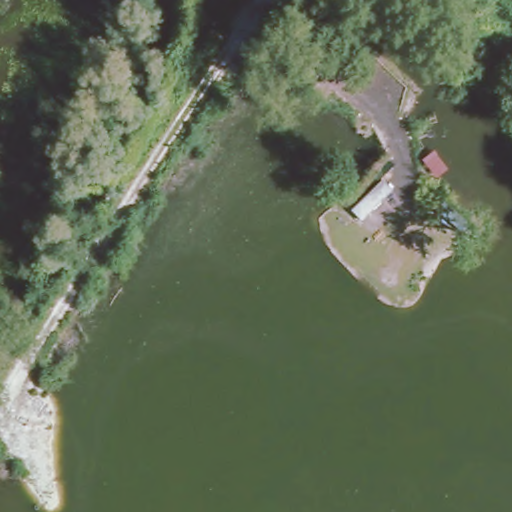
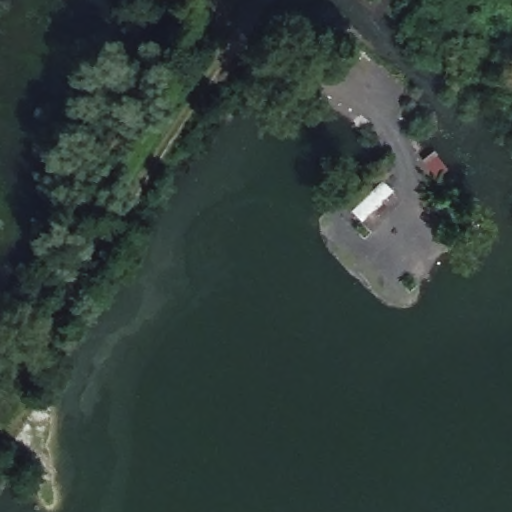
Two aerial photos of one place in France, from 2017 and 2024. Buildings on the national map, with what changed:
unchanged [(366,267),(382,246),(394,255),(380,277),(366,267)]

